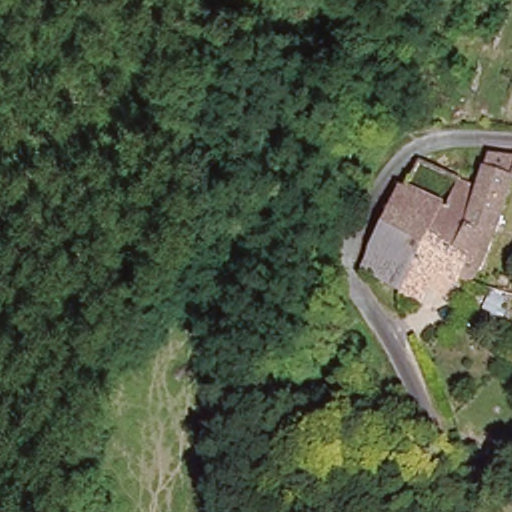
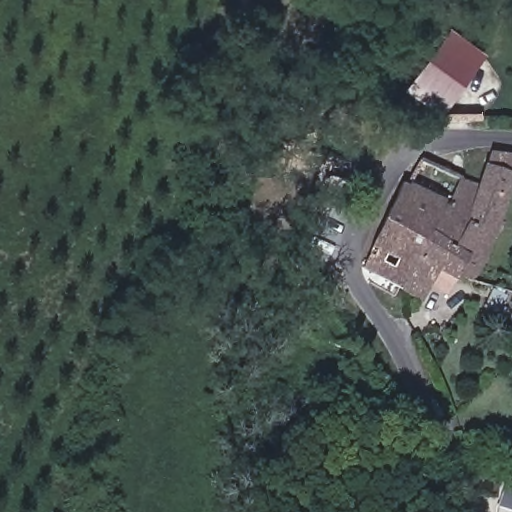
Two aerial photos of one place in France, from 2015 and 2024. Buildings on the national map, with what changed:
new [(484,53),(442,111),(406,85),(449,26),(484,53)]
unchanged [(465,245),(435,236),(415,298),(367,286),(385,191),(398,194),(407,163),(457,174),(455,180),(473,185),(482,155),(508,163),(503,183),(475,281),(457,275),(465,245)]
unchanged [(508,163),(512,164),(512,186),(503,183),(508,163)]
unchanged [(440,270),(431,302),(420,299),(415,298),(435,236),(465,245),(457,275),(440,270)]

